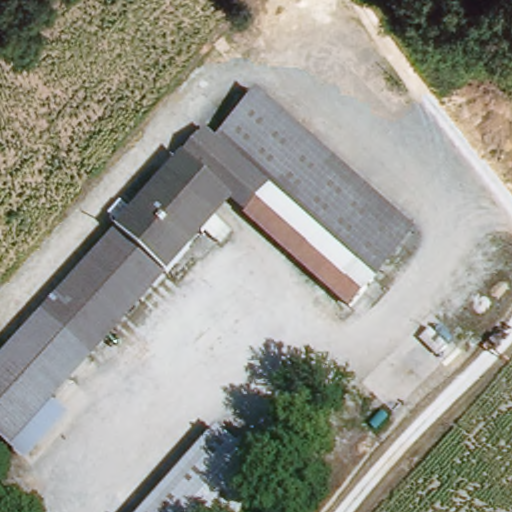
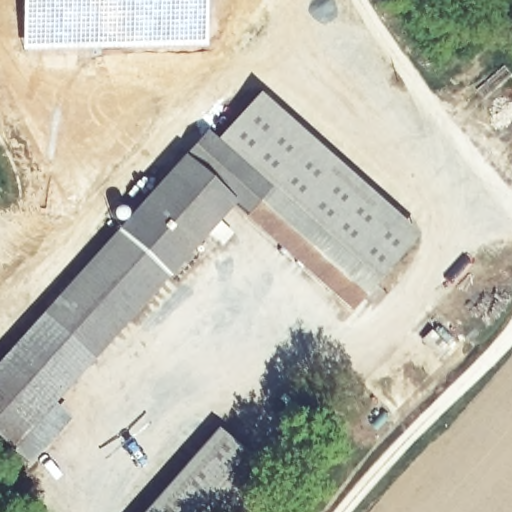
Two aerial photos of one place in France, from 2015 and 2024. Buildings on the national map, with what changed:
new [(206,0),(206,45),(24,49),(23,0),(206,0)]
unchanged [(257,174),(215,140),(258,93),(418,232),(378,278),(257,174)]
unchanged [(206,133),(215,140),(257,174),(378,278),(354,304),(349,300),(234,202),(221,215),(169,174),(206,133)]
unchanged [(168,172),(169,174),(217,216),(166,275),(116,230),(168,172)]
unchanged [(0,359),(13,345),(41,313),(116,230),(166,275),(154,288),(91,357),(8,447),(0,439),(0,359)]
unchanged [(68,419),(27,464),(11,449),(51,404),(68,419)]
unchanged [(217,428),(272,476),(242,512),(144,512),(217,428)]

